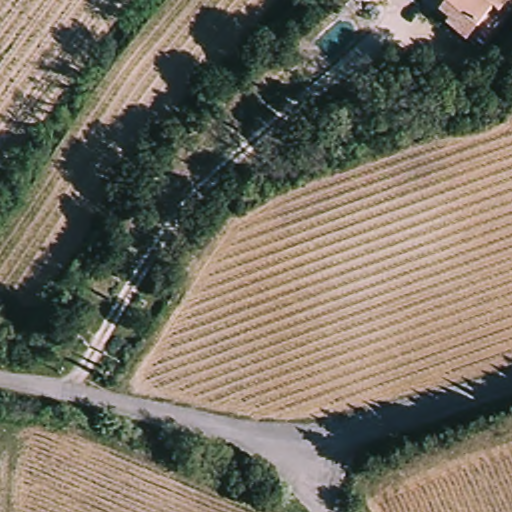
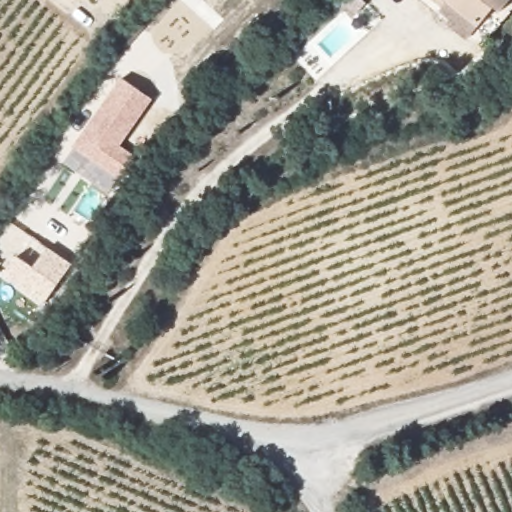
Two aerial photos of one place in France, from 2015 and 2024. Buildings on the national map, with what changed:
unchanged [(512,10),(480,49),(445,19),(455,10),(447,2),(448,1),(448,0),(512,0),(512,10)]
unchanged [(448,1),(447,0),(448,0),(448,1)]
new [(119,178),(109,193),(62,165),(73,146),(122,79),(153,99),(121,146),(135,156),(119,178)]
new [(72,264),(42,306),(2,276),(17,256),(34,267),(48,247),(72,264)]

